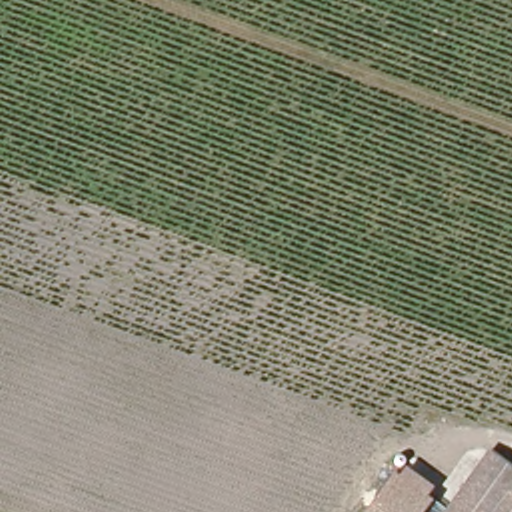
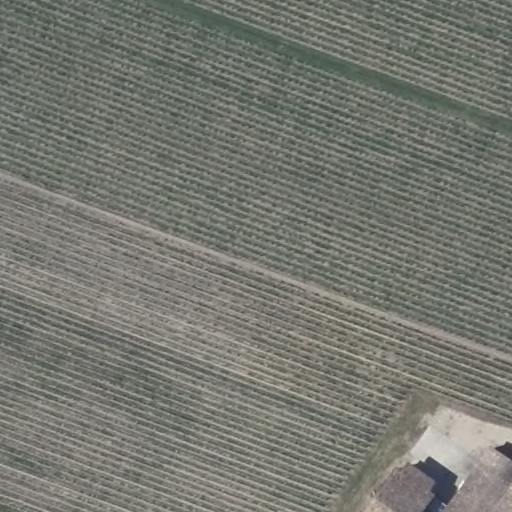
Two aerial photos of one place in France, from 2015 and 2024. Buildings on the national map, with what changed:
unchanged [(512,464),(512,512),(441,512),(485,446),(512,464)]
unchanged [(363,512),(405,460),(435,484),(425,502),(418,512),(363,512)]

